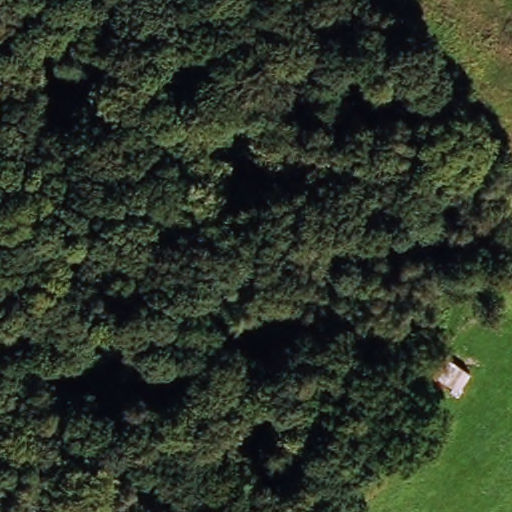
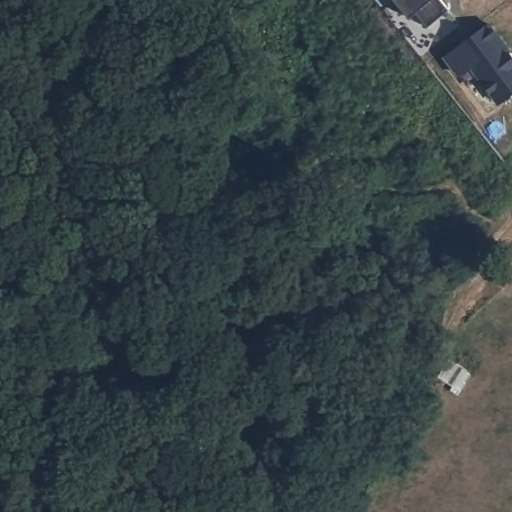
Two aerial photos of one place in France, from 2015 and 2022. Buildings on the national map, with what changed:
new [(451,10),(429,27),(417,14),(411,19),(397,0),(443,0),(451,10)]
new [(512,53),(512,95),(501,104),(473,66),(461,75),(447,56),(490,25),(512,53)]

